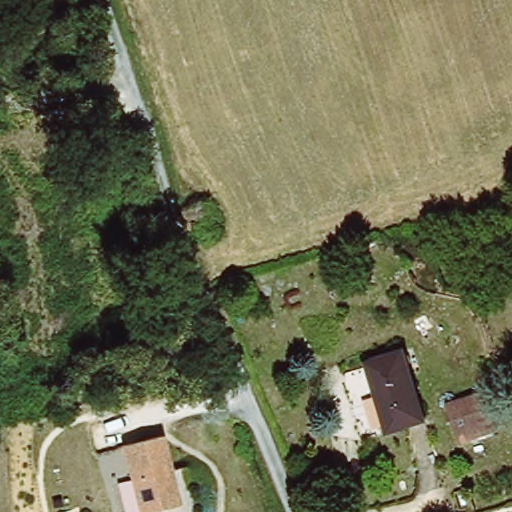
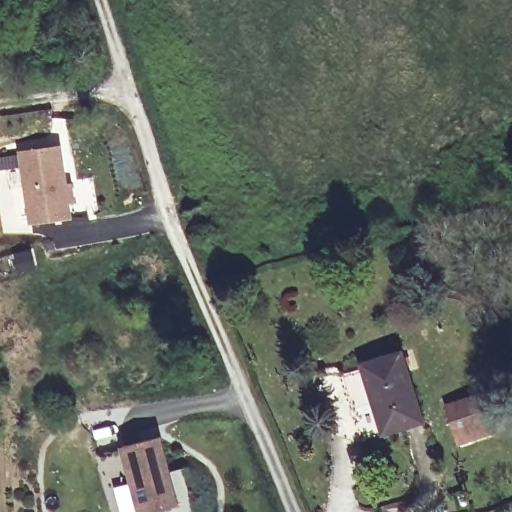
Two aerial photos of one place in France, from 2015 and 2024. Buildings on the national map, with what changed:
new [(66,146),(71,185),(76,184),(78,204),(73,205),(75,220),(29,225),(20,152),(66,146)]
demolished [(126,265),(123,259),(125,247),(122,239),(141,234),(143,263),(126,265)]
unchanged [(391,434),(371,367),(410,353),(432,421),(391,434)]
unchanged [(489,429),(462,438),(451,402),(475,394),(479,393),(478,389),(492,385),(497,407),(502,424),(489,429)]
unchanged [(165,431),(177,476),(174,477),(181,501),(145,512),(125,444),(165,431)]

